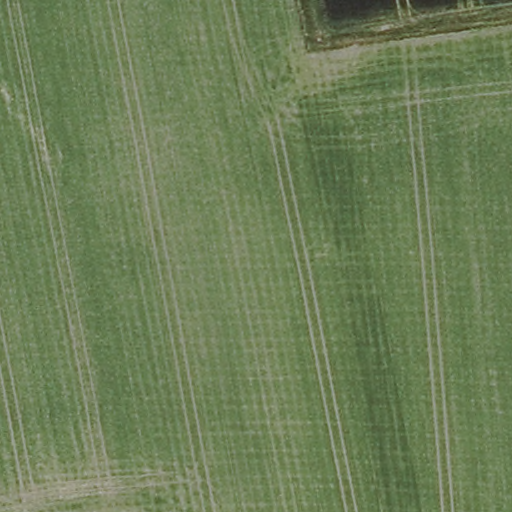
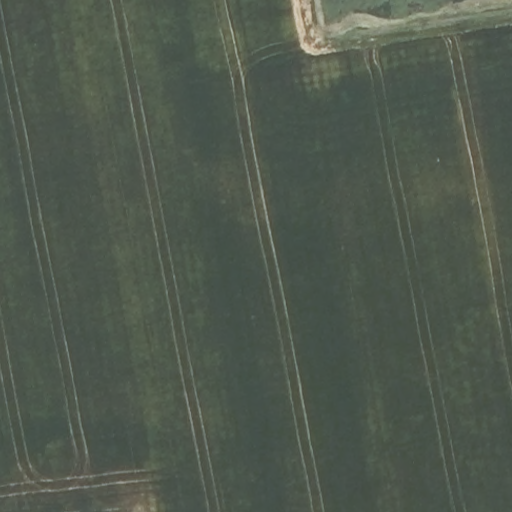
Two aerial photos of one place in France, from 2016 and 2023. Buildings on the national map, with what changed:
[]

